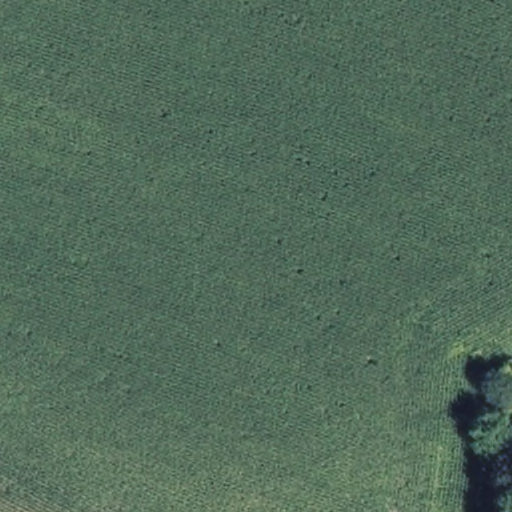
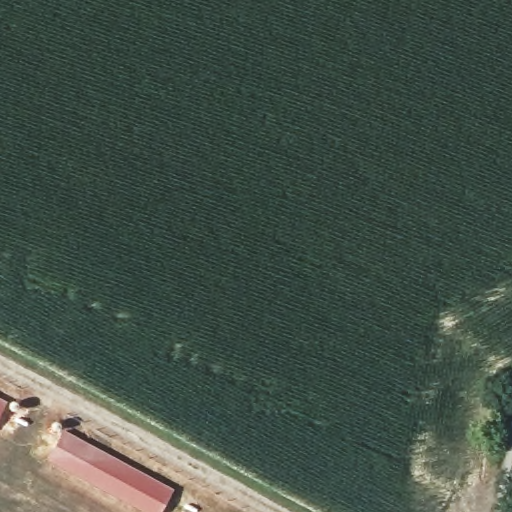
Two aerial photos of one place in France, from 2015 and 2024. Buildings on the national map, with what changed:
new [(7,402),(0,416),(0,397),(7,402)]
new [(174,489),(162,512),(145,512),(47,460),(64,430),(174,489)]

